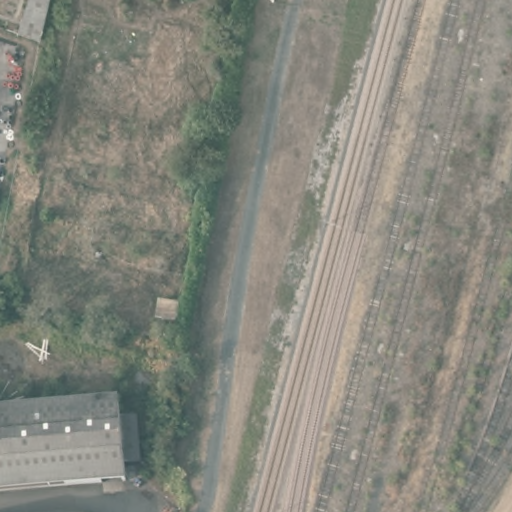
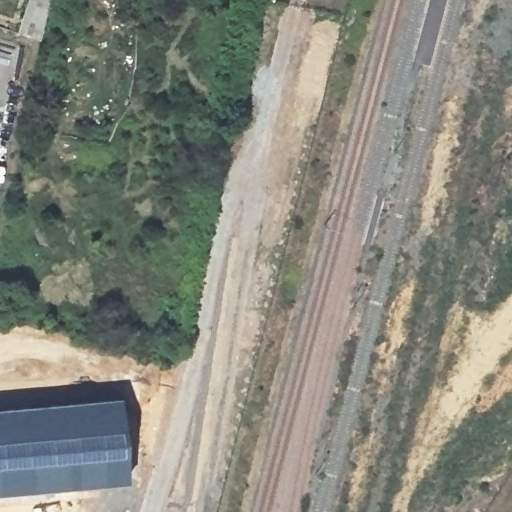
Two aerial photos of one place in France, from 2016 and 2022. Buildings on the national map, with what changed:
unchanged [(18,35),(28,0),(49,0),(41,41),(18,35)]
unchanged [(0,408),(120,397),(127,478),(0,488),(0,408)]

